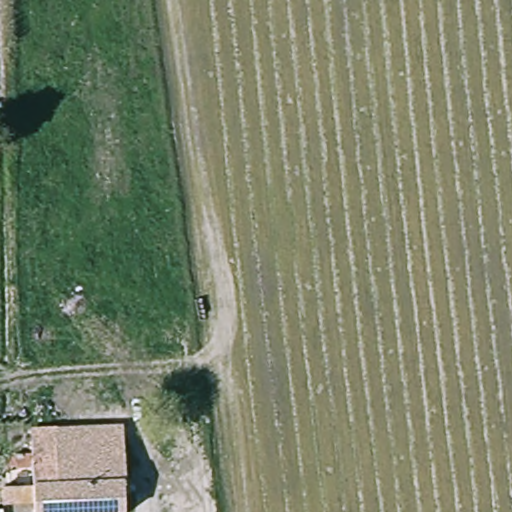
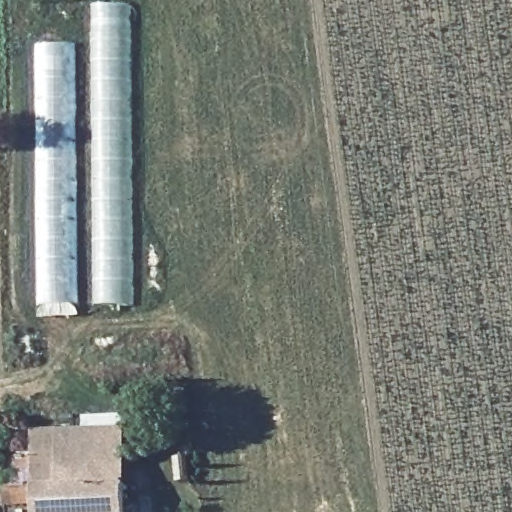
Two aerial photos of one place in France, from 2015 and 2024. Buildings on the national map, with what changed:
new [(132,8),(134,308),(99,307),(95,8),(132,8)]
new [(37,45),(75,44),(77,304),(40,306),(37,45)]
unchanged [(1,488),(32,487),(29,430),(118,426),(120,512),(32,512),(32,505),(1,506),(1,488)]

